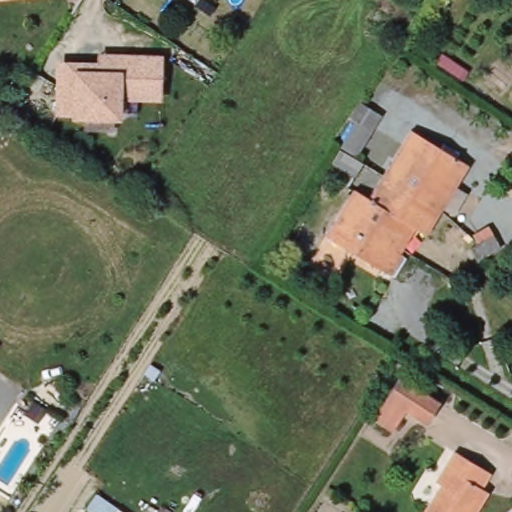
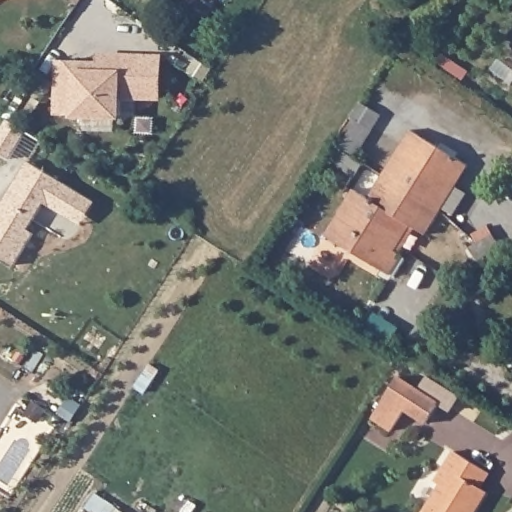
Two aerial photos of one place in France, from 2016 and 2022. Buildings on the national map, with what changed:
unchanged [(165,101),(122,101),(122,121),(56,120),(56,60),(97,60),(97,54),(165,55),(165,101)]
unchanged [(353,124),(347,116),(360,100),(381,112),(353,159),(367,164),(356,180),(326,164),(353,124)]
new [(0,149),(0,136),(12,118),(30,130),(45,140),(32,160),(32,161),(77,190),(96,202),(82,225),(63,212),(46,201),(29,228),(35,232),(15,263),(0,254),(0,208),(12,190),(27,166),(12,157),(0,149)]
unchanged [(442,210),(426,235),(411,225),(396,251),(407,257),(395,278),(326,236),(353,189),(368,198),(382,175),(411,130),(468,165),(442,210)]
unchanged [(427,423),(405,410),(392,431),(372,418),(400,376),(440,402),(427,423)]
unchanged [(425,512),(441,485),(436,482),(455,451),(490,473),(481,487),(487,491),(474,512),(425,512)]
unchanged [(116,512),(113,512),(114,510),(116,512)]

